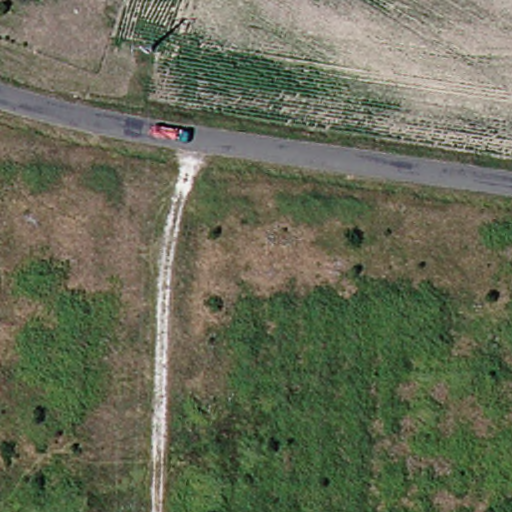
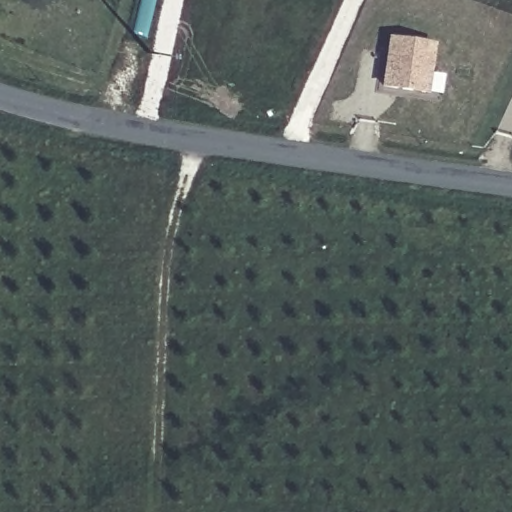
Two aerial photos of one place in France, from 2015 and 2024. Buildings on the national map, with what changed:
new [(431,74),(444,75),(441,97),(381,89),(388,37),(435,44),(431,74)]

